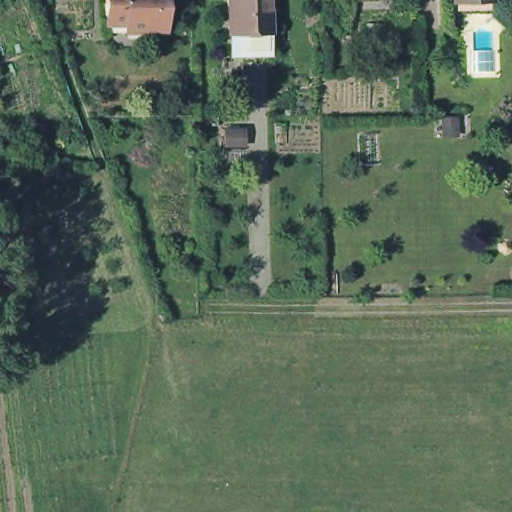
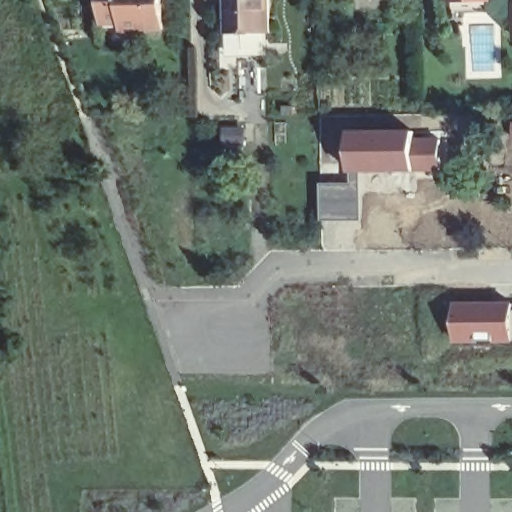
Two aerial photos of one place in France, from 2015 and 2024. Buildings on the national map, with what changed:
unchanged [(135,26),(135,18),(116,19),(116,0),(174,0),(175,26),(135,26)]
unchanged [(230,30),(230,0),(271,0),(270,31),(230,30)]
new [(221,126),(243,126),(243,150),(221,149),(221,126)]
new [(415,139),(440,137),(440,171),(415,171),(351,171),(352,132),(415,130),(415,139)]
new [(360,182),(362,220),(320,220),(320,182),(360,182)]
new [(512,301),(512,343),(457,344),(457,302),(512,301)]

